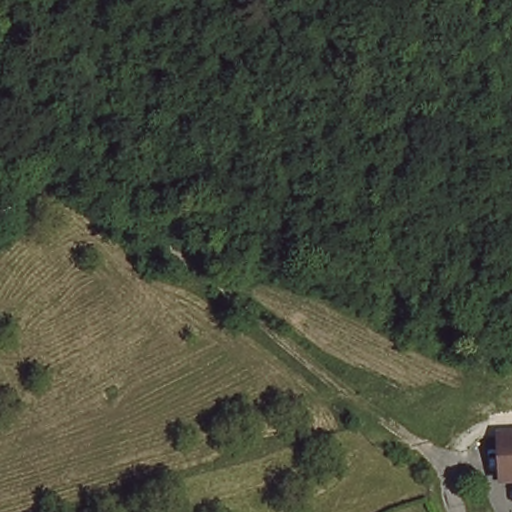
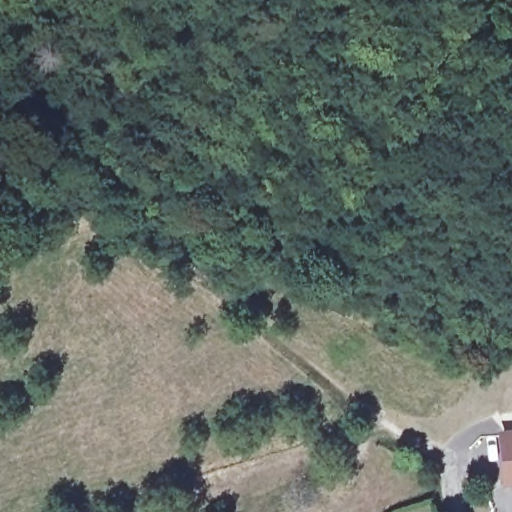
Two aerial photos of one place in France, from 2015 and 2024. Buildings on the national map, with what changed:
unchanged [(503,479),(501,437),(512,436),(512,478),(503,479)]

